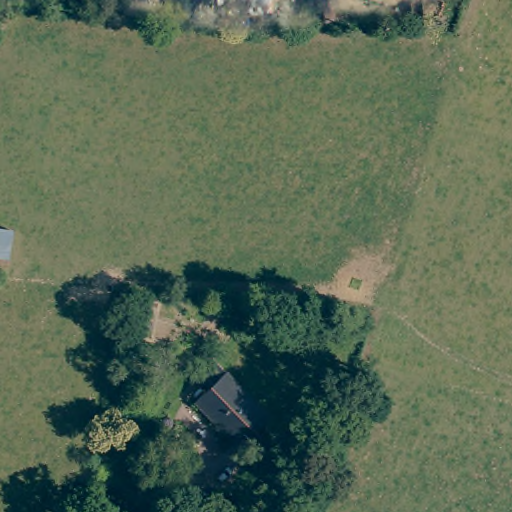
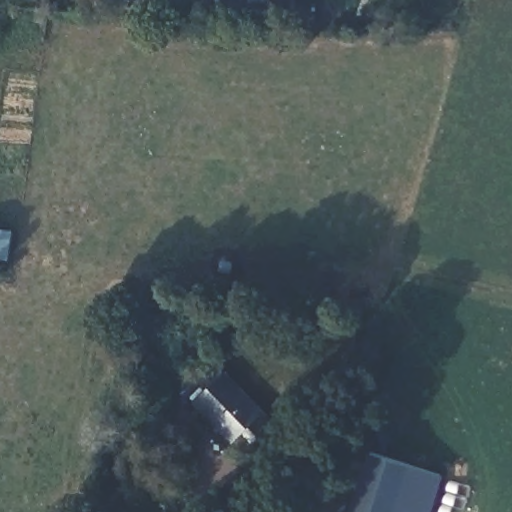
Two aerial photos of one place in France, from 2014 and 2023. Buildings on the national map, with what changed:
unchanged [(217,2),(218,0),(294,0),(293,6),(217,2)]
unchanged [(0,264),(0,229),(22,231),(18,266),(0,264)]
unchanged [(238,432),(229,441),(189,400),(219,370),(269,421),(248,442),(238,432)]
new [(432,512),(350,512),(369,451),(444,476),(432,512)]

